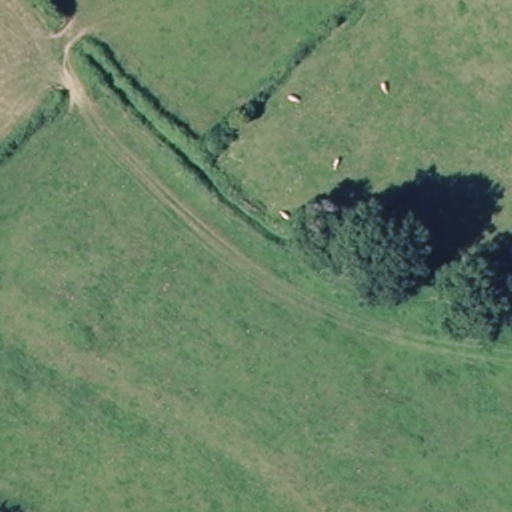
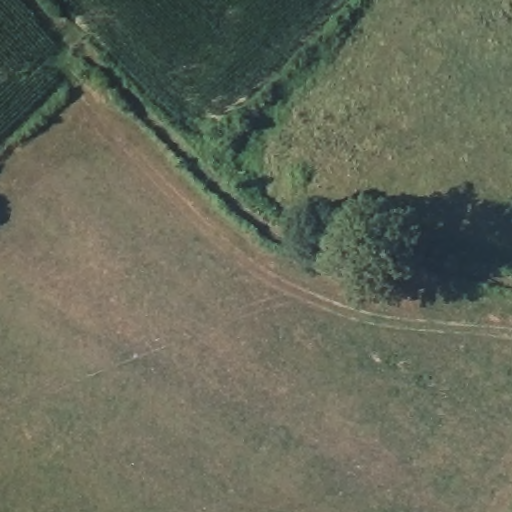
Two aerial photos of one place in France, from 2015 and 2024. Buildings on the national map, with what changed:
unchanged [(399,266),(392,292),(358,284),(363,260),(399,266)]

